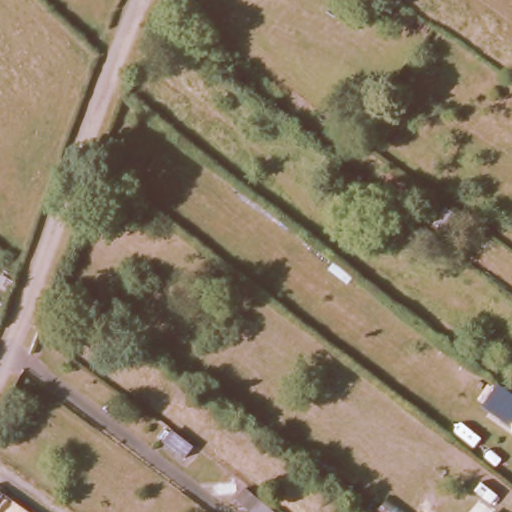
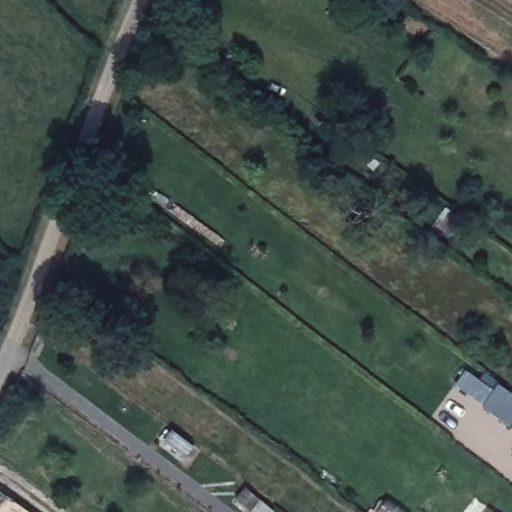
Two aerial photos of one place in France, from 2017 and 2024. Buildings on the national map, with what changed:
unchanged [(496,382),(512,393),(512,428),(477,405),(496,382)]

